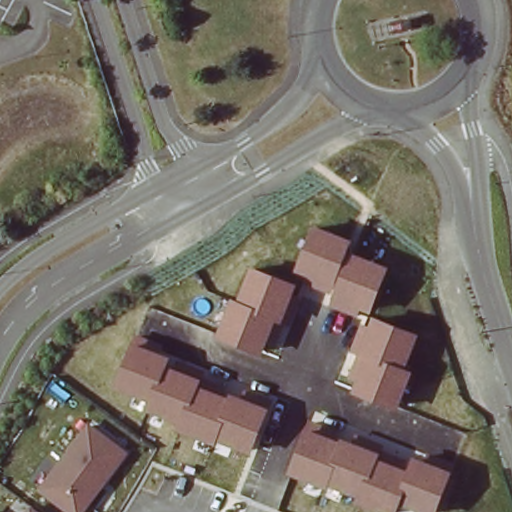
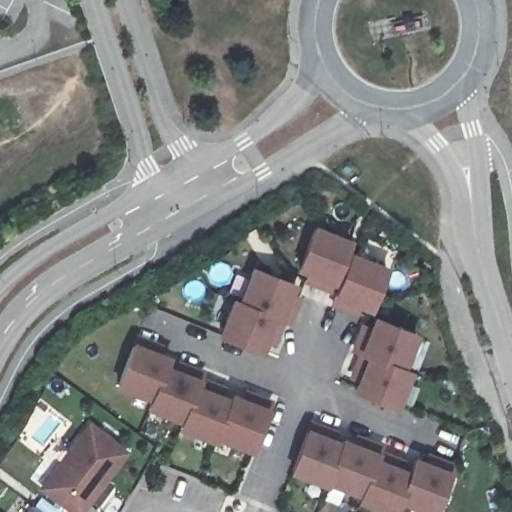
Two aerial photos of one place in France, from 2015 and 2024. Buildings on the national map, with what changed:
unchanged [(352,239),(347,251),(389,266),(373,310),(365,306),(359,316),(330,305),(333,294),(300,285),(285,324),(277,321),(263,353),(218,335),(233,298),(240,302),(252,267),(290,281),(314,225),(352,239)]
unchanged [(356,380),(350,376),(358,355),(349,351),(361,323),(368,325),(370,316),(418,333),(406,368),(412,370),(400,408),(352,392),(356,380)]
unchanged [(250,452),(217,439),(215,443),(178,430),(182,423),(145,410),(149,399),(118,389),(133,343),(137,336),(172,348),(172,357),(167,366),(202,379),(201,386),(228,396),(230,393),(269,407),(250,452)]
unchanged [(436,512),(419,512),(399,504),(397,512),(377,512),(355,504),(356,498),(290,475),(307,429),(311,422),(343,439),(382,452),(380,457),(411,470),(415,457),(450,471),(436,512)]
unchanged [(130,451),(83,512),(71,512),(42,489),(93,423),(130,451)]
unchanged [(41,512),(29,512),(33,506),(41,512)]

